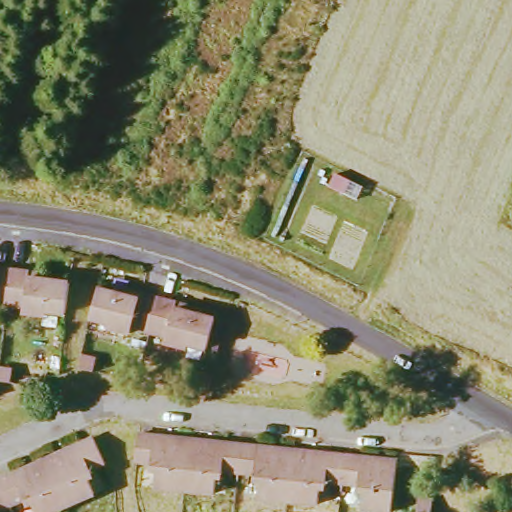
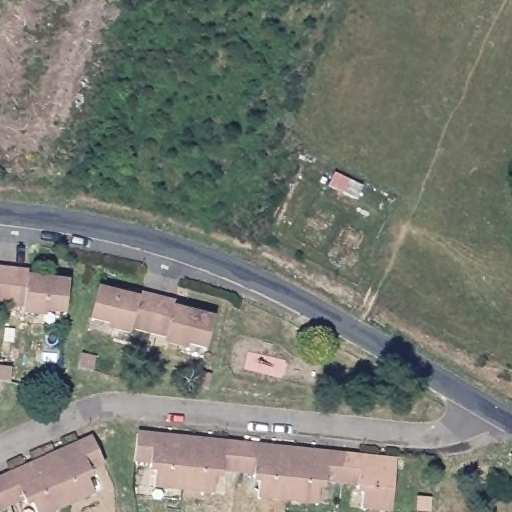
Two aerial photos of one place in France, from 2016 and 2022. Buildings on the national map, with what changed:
unchanged [(48,319),(25,316),(25,312),(0,309),(0,272),(31,276),(33,281),(74,286),(70,315),(49,314),(48,319)]
unchanged [(147,308),(149,300),(182,312),(182,318),(220,330),(212,357),(193,353),(192,360),(170,353),(170,346),(140,337),(137,343),(117,337),(118,333),(93,324),(103,294),(147,308)]
unchanged [(361,510),(363,488),(332,485),(330,505),(263,501),(263,480),(219,475),(215,495),(149,488),(149,468),(135,467),(138,437),(397,459),(391,512),(361,510)]
unchanged [(101,491),(57,512),(33,512),(29,504),(12,512),(0,512),(0,486),(100,438),(112,463),(92,473),(101,491)]

